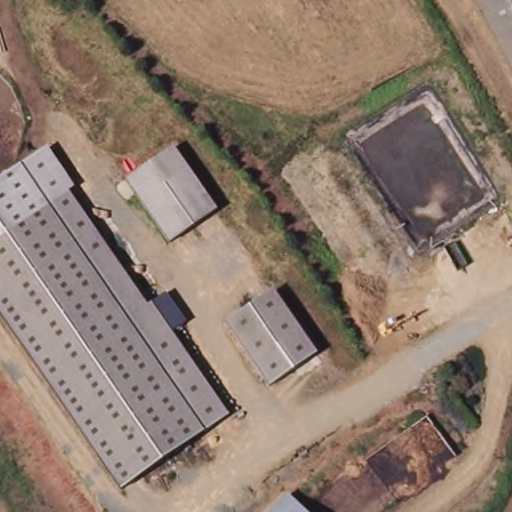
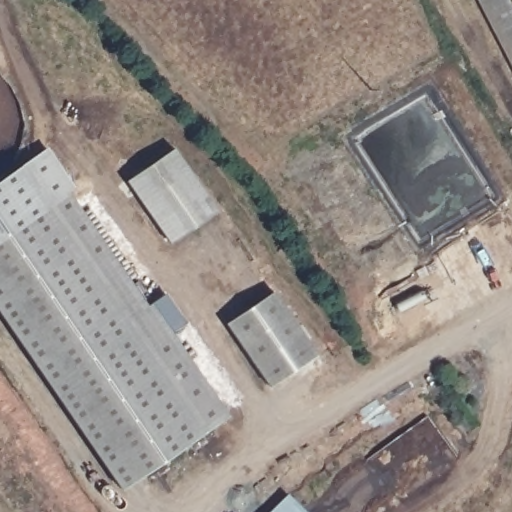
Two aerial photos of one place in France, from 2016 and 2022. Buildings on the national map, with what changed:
unchanged [(512,65),(479,0),(512,0),(512,65)]
unchanged [(48,148),(74,187),(67,191),(0,238),(0,181),(48,148)]
unchanged [(217,211),(170,244),(126,181),(173,149),(217,211)]
unchanged [(77,425),(0,314),(0,238),(67,191),(204,382),(228,415),(121,490),(77,425)]
unchanged [(310,346),(316,355),(269,387),(254,365),(227,325),(273,292),(310,346)]
unchanged [(309,512),(275,512),(293,496),(309,512)]

